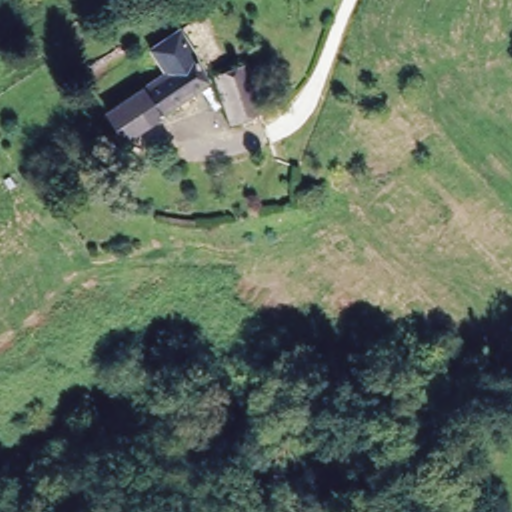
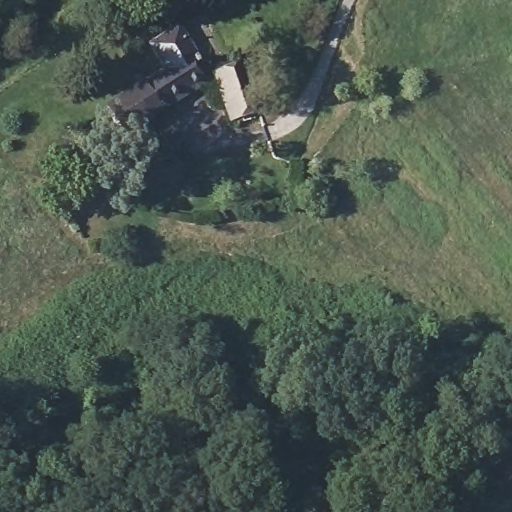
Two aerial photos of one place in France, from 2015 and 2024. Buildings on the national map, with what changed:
unchanged [(148,53),(180,34),(191,49),(190,55),(206,79),(122,131),(105,105),(111,101),(160,72),(148,53)]
unchanged [(257,122),(226,130),(212,75),(243,67),(255,115),(257,122)]

